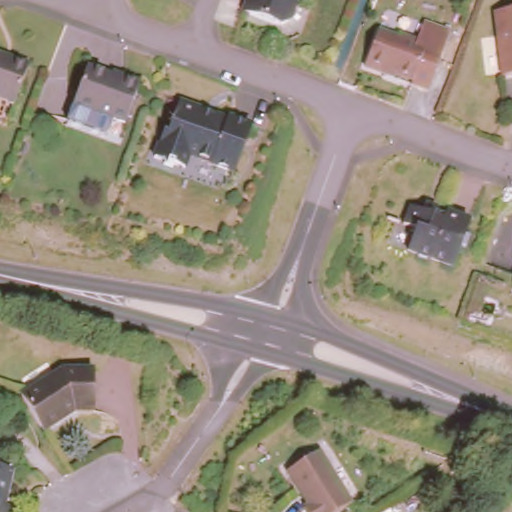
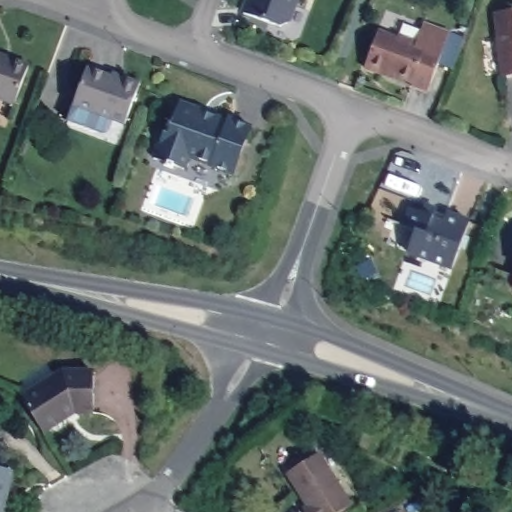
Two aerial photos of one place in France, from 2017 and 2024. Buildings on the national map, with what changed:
unchanged [(246,0),(293,0),(285,20),(280,22),(242,9),(246,0)]
unchanged [(494,8),(512,6),(512,71),(501,72),(494,8)]
unchanged [(427,22),(453,30),(429,87),(410,81),(427,47),(419,44),(427,22)]
unchanged [(376,32),(395,39),(395,36),(419,44),(427,47),(410,81),(385,72),(383,75),(363,68),(376,32)]
unchanged [(0,97),(0,52),(1,53),(10,56),(27,62),(12,101),(0,97)]
unchanged [(71,116),(77,101),(91,63),(125,75),(126,72),(145,79),(129,120),(123,135),(71,116)]
unchanged [(210,161),(210,160),(187,152),(182,165),(172,161),(171,164),(162,161),(163,158),(152,154),(163,126),(166,127),(178,96),(200,105),(200,109),(213,113),(226,118),(228,115),(250,123),(232,170),(210,161)]
unchanged [(468,232),(473,234),(469,245),(465,244),(456,265),(430,255),(430,257),(421,255),(422,252),(411,249),(419,227),(406,222),(413,205),(425,209),(428,201),(440,206),(439,210),(448,214),(450,210),(474,219),(468,232)]
unchanged [(62,367),(92,368),(93,408),(74,407),(41,427),(20,392),(62,367)]
unchanged [(318,448),(351,500),(333,512),(309,512),(303,503),(308,500),(286,467),(318,448)]
unchanged [(11,465),(5,491),(1,490),(0,496),(0,463),(11,465)]
unchanged [(12,502),(10,512),(0,512),(0,500),(12,502)]

